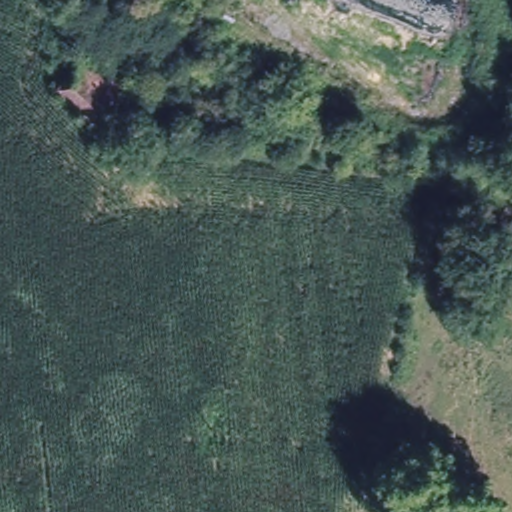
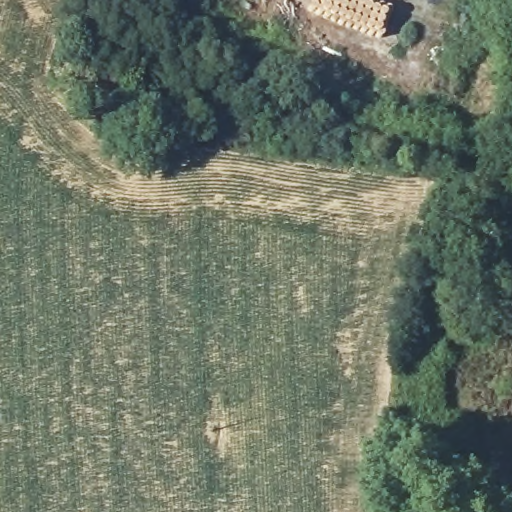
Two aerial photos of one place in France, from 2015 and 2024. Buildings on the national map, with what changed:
unchanged [(106,86),(79,116),(46,84),(71,56),(106,86)]

